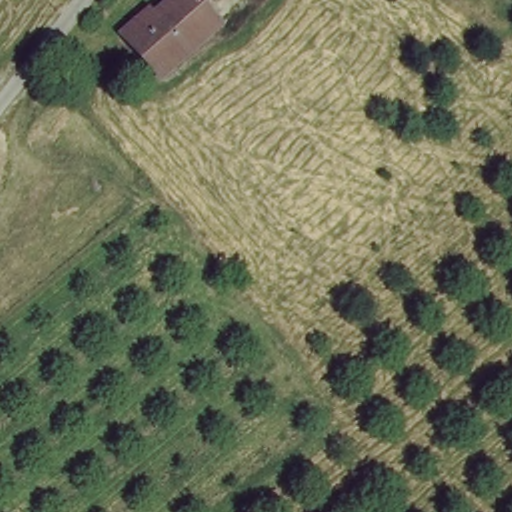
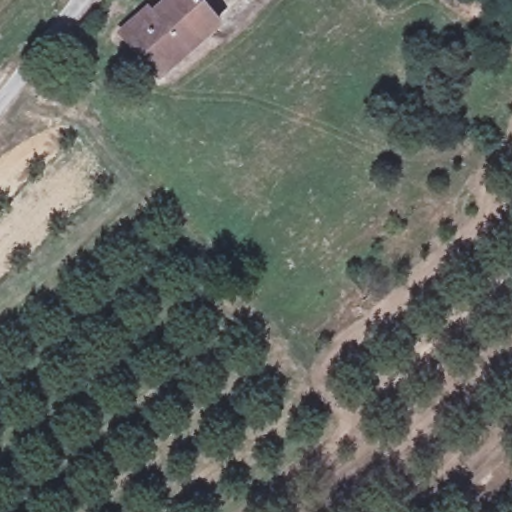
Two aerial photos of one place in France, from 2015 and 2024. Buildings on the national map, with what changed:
unchanged [(142,10),(146,17),(166,0),(201,0),(224,25),(170,68),(160,55),(151,62),(123,26),(142,10)]

